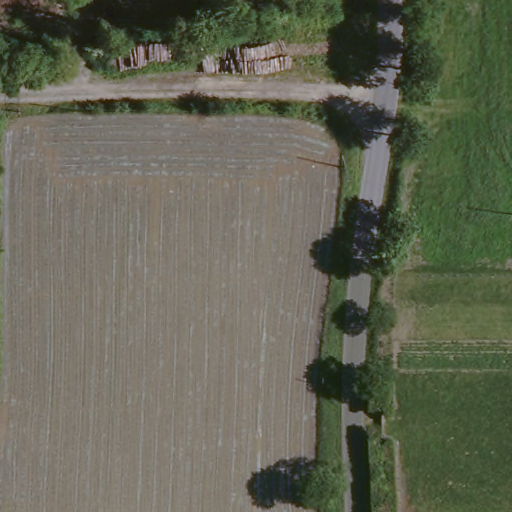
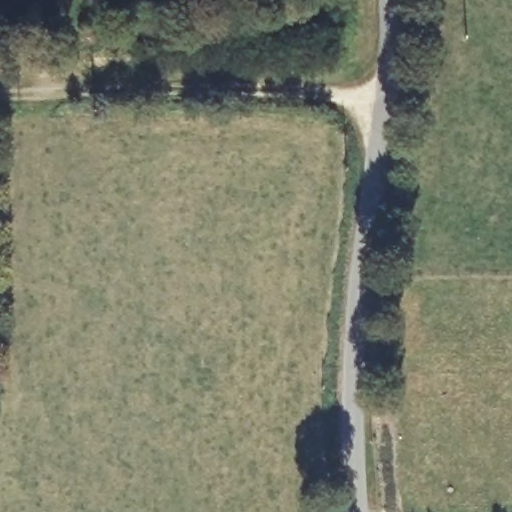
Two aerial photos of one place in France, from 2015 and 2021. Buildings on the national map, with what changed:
unchanged [(16,81),(0,78),(0,62),(19,65),(16,81)]

